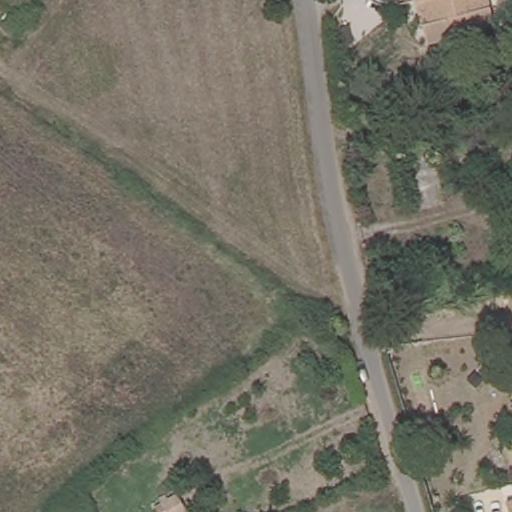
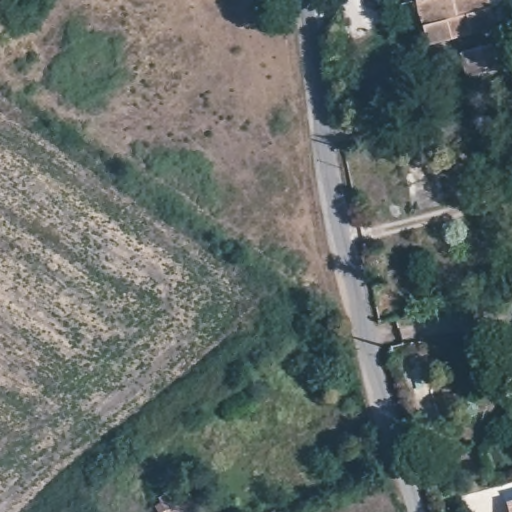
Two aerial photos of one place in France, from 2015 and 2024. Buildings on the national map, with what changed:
unchanged [(430,43),(418,0),(489,0),(496,24),(430,43)]
unchanged [(155,512),(151,499),(180,488),(187,512),(155,512)]
unchanged [(511,501),(512,501),(512,512),(503,512),(501,504),(511,501)]

